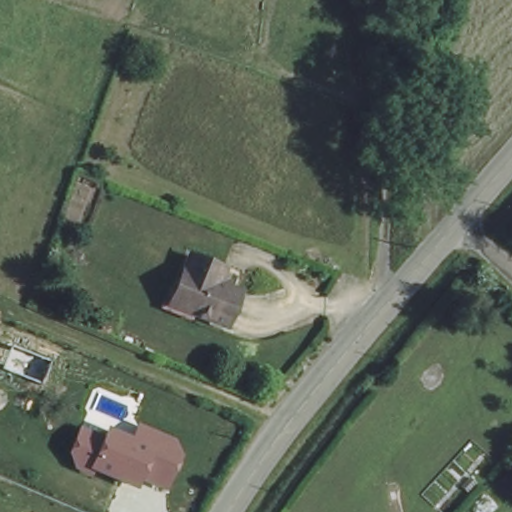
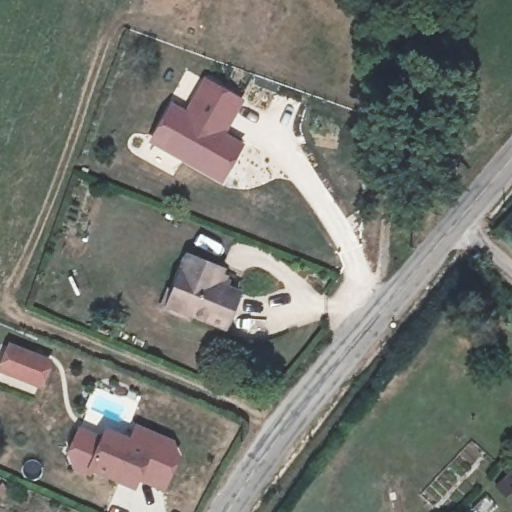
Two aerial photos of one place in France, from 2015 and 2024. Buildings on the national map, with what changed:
new [(171,100),(185,107),(202,76),(243,99),(227,132),(245,143),(222,185),(148,142),(171,100)]
unchanged [(196,312),(193,318),(165,304),(173,286),(180,288),(190,264),(226,280),(220,294),(240,304),(229,327),(196,312)]
new [(52,359),(42,389),(0,374),(0,360),(7,342),(52,359)]
unchanged [(101,433),(105,426),(131,436),(135,423),(173,438),(180,456),(166,490),(140,481),(137,490),(92,471),(90,475),(73,470),(67,456),(80,426),(101,433)]

